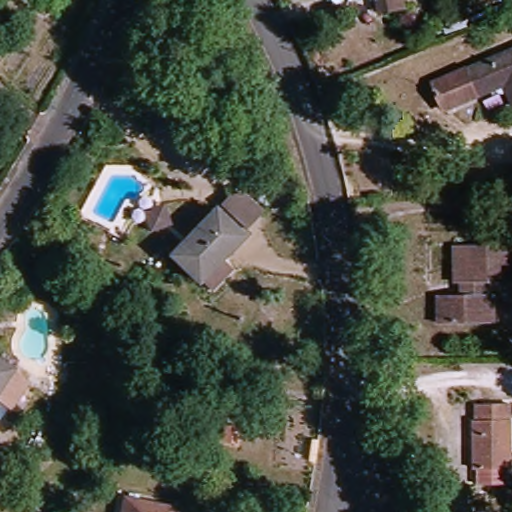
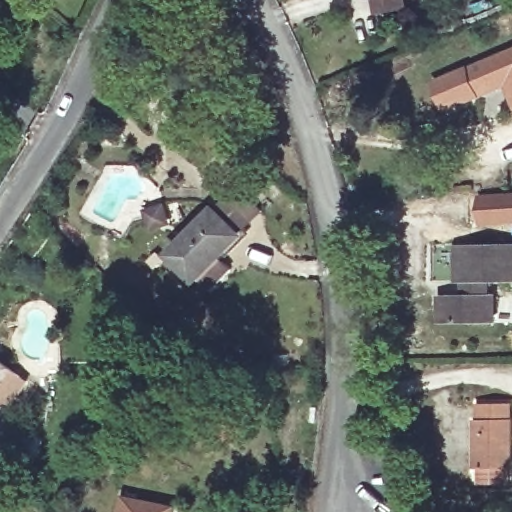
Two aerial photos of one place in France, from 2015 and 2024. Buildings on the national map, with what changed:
unchanged [(494,95),(460,108),(448,78),(512,56),(512,82),(494,89),(494,95)]
unchanged [(205,167),(194,157),(211,136),(224,146),(205,167)]
unchanged [(247,190),(271,215),(250,236),(225,210),(247,190)]
new [(512,226),(478,228),(476,194),(512,191),(512,226)]
unchanged [(139,204),(159,199),(164,219),(144,224),(139,204)]
unchanged [(250,236),(226,257),(237,269),(215,290),(204,278),(203,279),(179,253),(225,210),(250,236)]
unchanged [(488,293),(499,293),(499,319),(444,319),(445,293),(467,292),(467,279),(456,278),(455,239),(512,241),(512,278),(489,277),(488,293)]
unchanged [(25,405),(6,392),(0,402),(0,351),(23,366),(44,378),(25,405)]
unchanged [(486,413),(492,413),(492,399),(512,401),(512,468),(482,466),(486,413)]
unchanged [(177,512),(128,512),(129,492),(177,493),(177,512)]

